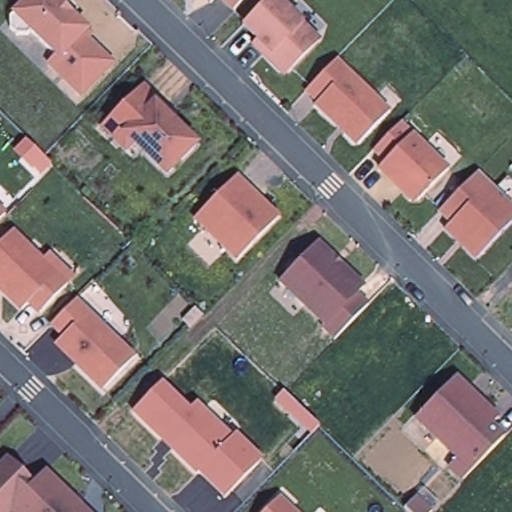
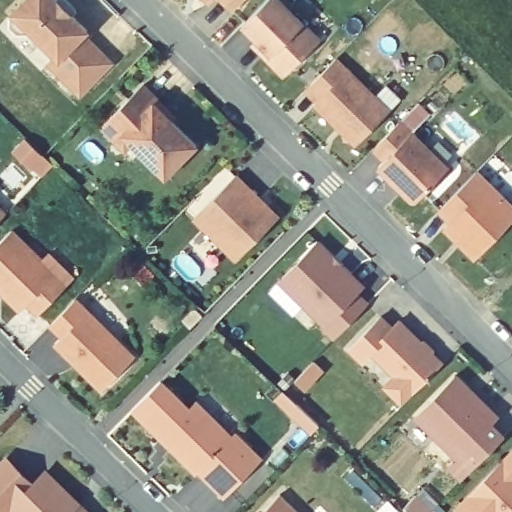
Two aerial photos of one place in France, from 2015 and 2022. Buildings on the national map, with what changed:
unchanged [(110,65),(78,96),(45,64),(53,56),(28,33),(25,36),(15,36),(7,29),(7,19),(26,0),(53,0),(55,2),(57,0),(62,0),(75,12),(70,17),(90,37),(86,41),(110,65)]
unchanged [(214,0),(208,5),(203,0),(214,0)]
unchanged [(219,0),(244,0),(232,13),(219,0)]
unchanged [(241,31),(262,11),(273,0),(279,0),(291,13),(288,16),(319,46),(287,78),(278,78),(270,70),(252,51),(256,47),(241,31)]
unchanged [(389,119),(358,151),(353,151),(311,113),(318,106),(307,95),(333,68),(389,119)]
unchanged [(100,130),(108,121),(142,88),(156,102),(173,119),(170,123),(196,148),(165,178),(132,145),(123,154),(100,130)]
unchanged [(453,167),(424,197),(416,197),(383,164),(391,157),(379,146),(405,120),(453,167)]
unchanged [(512,209),(512,225),(476,261),(445,231),(451,223),(440,212),(477,175),(512,209)]
unchanged [(278,220),(235,263),(192,221),(235,178),(278,220)]
unchanged [(0,219),(0,212),(3,216),(0,219)]
unchanged [(20,311),(0,291),(0,242),(10,232),(41,262),(47,255),(73,279),(66,286),(38,314),(27,304),(20,311)]
unchanged [(363,289),(355,296),(367,307),(333,341),(321,330),(323,327),(278,283),(317,244),(363,289)]
unchanged [(55,344),(62,337),(50,326),(52,324),(75,301),(133,360),(101,391),(75,365),(70,359),(55,344)]
unchanged [(193,315),(201,322),(188,334),(181,327),(193,315)]
new [(394,326),(400,319),(422,342),(425,339),(435,349),(433,353),(445,364),(402,406),(381,387),(392,376),(371,355),(363,364),(348,351),(381,316),(394,326)]
unchanged [(449,464),(457,455),(415,415),(455,374),(498,416),(491,423),(505,435),(505,436),(463,478),(449,464)]
unchanged [(225,497),(198,473),(195,475),(135,413),(163,382),(191,409),(197,403),(231,435),(235,430),(263,457),(225,497)]
new [(452,510),(512,448),(512,512),(454,512),(452,510)]
unchanged [(9,511),(8,512),(0,512),(0,466),(6,460),(33,486),(46,473),(78,504),(86,512),(11,512),(9,511)]
unchanged [(280,497),(297,512),(266,512),(280,497)]
unchanged [(416,504),(425,512),(408,512),(416,504)]

